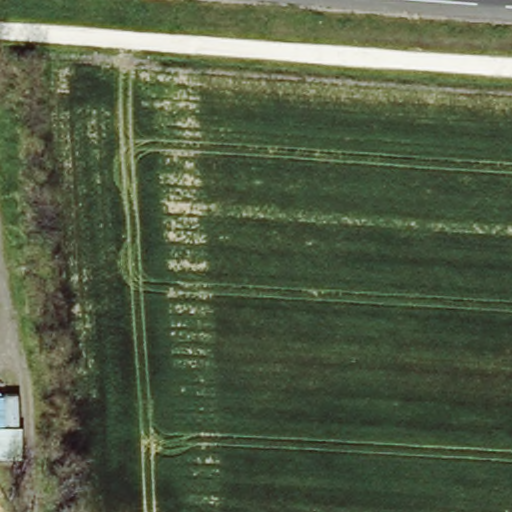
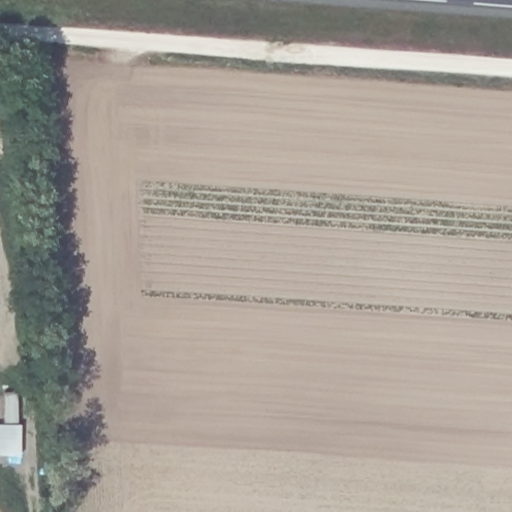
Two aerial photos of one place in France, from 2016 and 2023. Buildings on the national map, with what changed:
unchanged [(22,403),(0,406),(0,379),(16,375),(22,403)]

